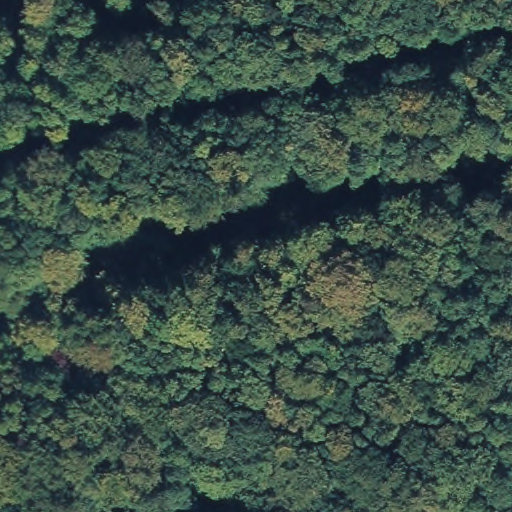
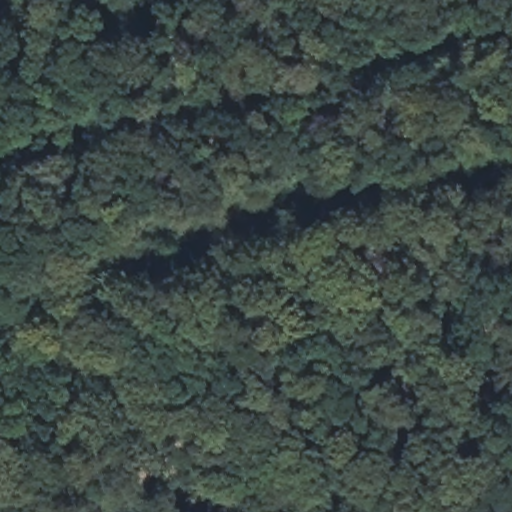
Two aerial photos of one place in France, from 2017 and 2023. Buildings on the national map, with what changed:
[]

